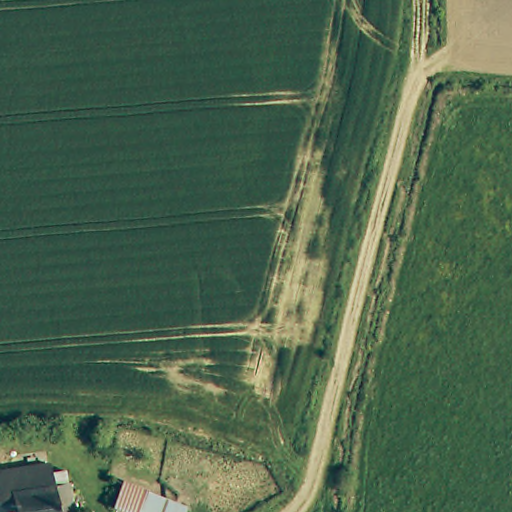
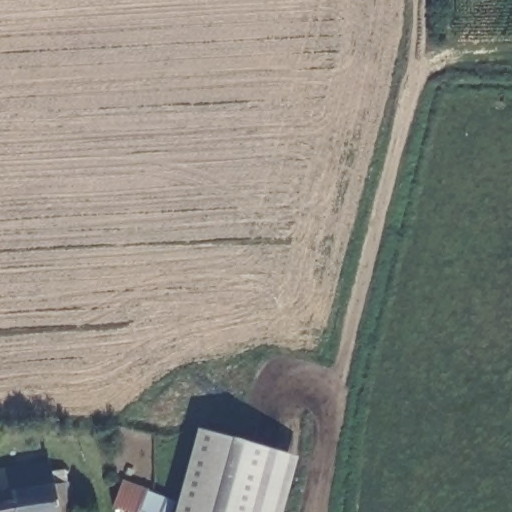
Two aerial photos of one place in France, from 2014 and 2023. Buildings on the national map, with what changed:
new [(280,512),(123,512),(111,508),(121,480),(176,502),(196,428),(295,457),(280,512)]
unchanged [(55,484),(72,481),(74,488),(78,512),(0,512),(0,473),(54,464),(55,484)]

